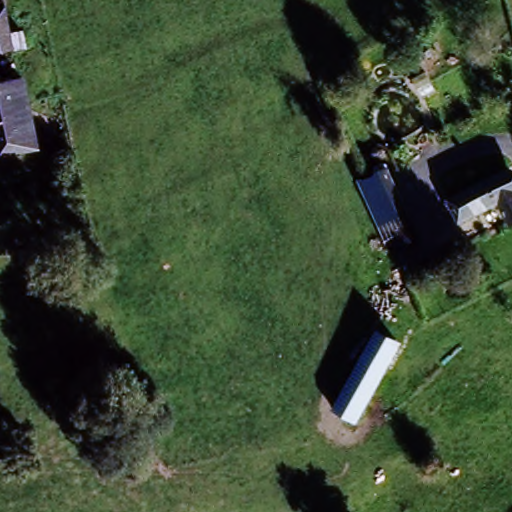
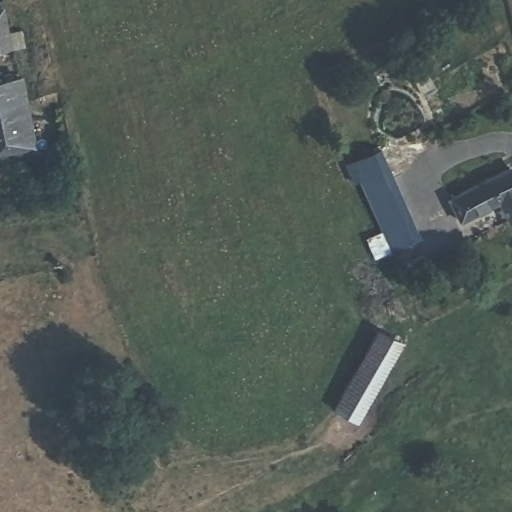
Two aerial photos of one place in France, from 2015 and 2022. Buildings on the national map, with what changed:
unchanged [(0,51),(0,23),(6,49),(0,51)]
unchanged [(17,76),(37,146),(18,151),(0,87),(0,82),(17,76)]
unchanged [(1,157),(0,151),(0,87),(18,151),(1,157)]
unchanged [(512,221),(507,223),(496,202),(460,221),(449,198),(510,167),(512,172),(512,221)]
unchanged [(389,253),(380,231),(358,183),(385,171),(406,219),(416,241),(389,253)]
unchanged [(331,407),(376,329),(397,342),(353,420),(331,407)]

